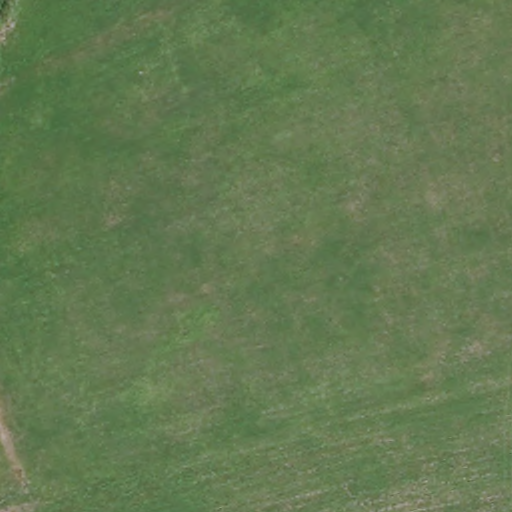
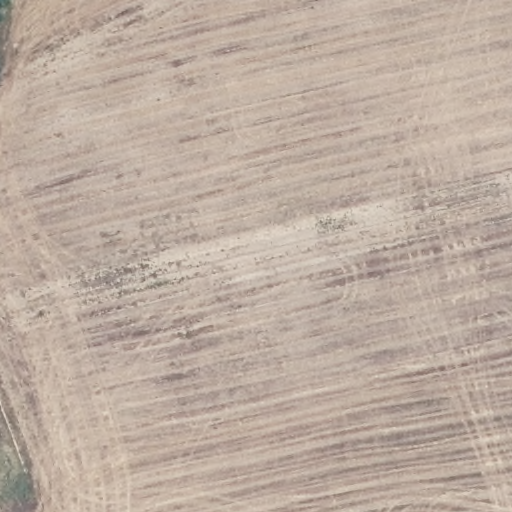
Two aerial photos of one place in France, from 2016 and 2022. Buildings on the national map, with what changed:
[]

